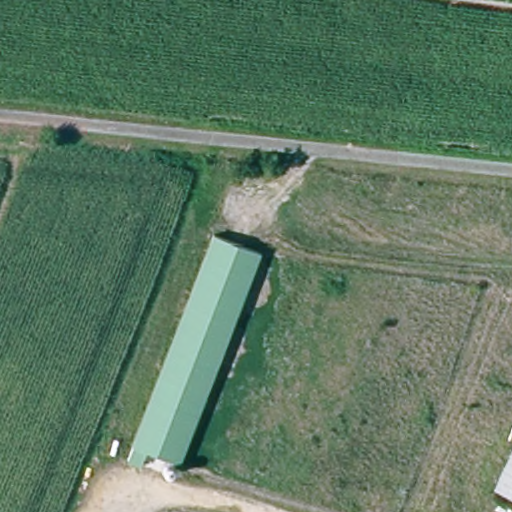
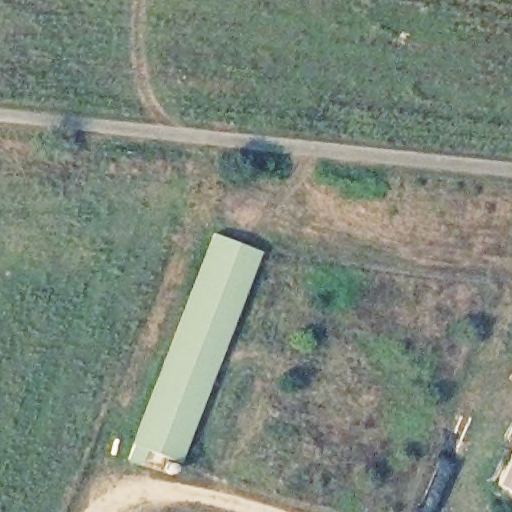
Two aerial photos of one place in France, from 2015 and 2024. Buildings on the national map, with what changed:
unchanged [(210,232),(260,251),(180,460),(147,450),(140,465),(126,460),(130,445),(210,232)]
unchanged [(500,481),(512,454),(512,487),(500,481)]

